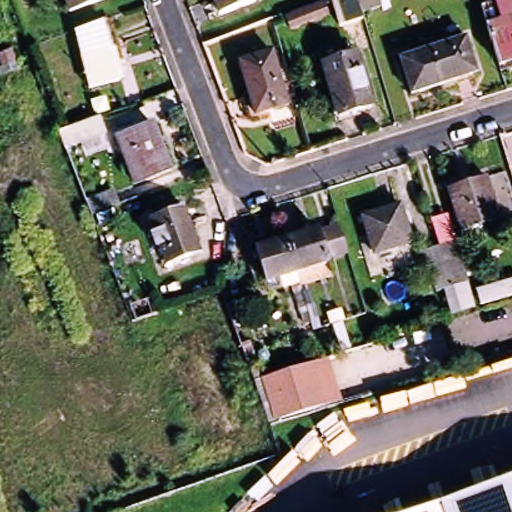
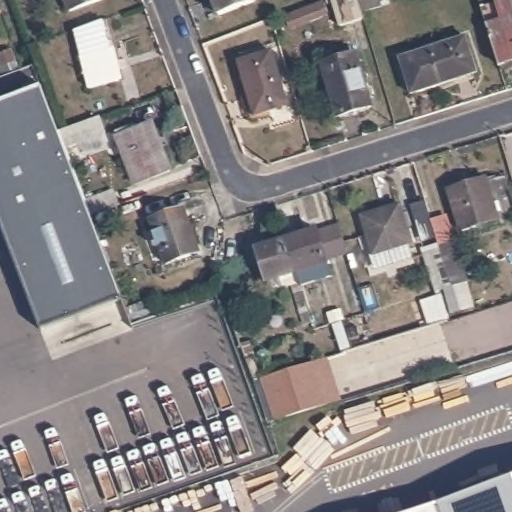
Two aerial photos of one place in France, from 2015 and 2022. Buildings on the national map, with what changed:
unchanged [(65,0),(100,0),(69,11),(65,0)]
unchanged [(214,0),(255,0),(255,2),(220,15),(214,0)]
unchanged [(341,28),(333,0),(357,0),(363,21),(341,28)]
unchanged [(363,14),(359,0),(380,0),(382,10),(363,14)]
unchanged [(496,2),(502,0),(512,0),(512,62),(501,65),(489,26),(482,6),(496,2)]
unchanged [(287,17),(326,3),(331,17),(293,31),(287,17)]
unchanged [(120,79),(93,90),(73,33),(101,22),(120,79)]
unchanged [(480,73),(415,93),(403,57),(468,37),(480,73)]
unchanged [(288,104),(255,114),(240,62),(273,52),(288,104)]
unchanged [(372,106),(340,117),(323,65),(355,54),(372,106)]
new [(0,214),(0,99),(41,83),(65,148),(123,298),(44,329),(0,214)]
unchanged [(91,161),(85,147),(70,153),(65,137),(105,123),(110,137),(109,138),(115,152),(91,161)]
unchanged [(175,177),(138,190),(122,143),(120,136),(140,129),(142,135),(157,129),(175,177)]
unchanged [(500,221),(463,233),(450,190),(488,179),(500,221)]
unchanged [(111,189),(116,208),(94,220),(85,200),(111,189)]
unchanged [(413,245),(375,256),(363,218),(401,206),(413,245)]
unchanged [(200,253),(166,266),(150,223),(184,210),(200,253)]
new [(447,212),(455,238),(440,242),(430,215),(447,212)]
unchanged [(314,233),(335,226),(343,254),(322,260),(324,264),(293,274),(282,241),(313,231),(314,233)]
unchanged [(261,284),(251,251),(282,241),(293,274),(261,284)]
unchanged [(452,320),(444,296),(438,297),(426,256),(440,252),(456,247),(470,287),(466,288),(475,314),(452,320)]
unchanged [(240,304),(226,303),(227,277),(240,277),(240,304)]
new [(512,279),(512,297),(480,306),(478,287),(512,279)]
unchanged [(325,361),(339,404),(285,421),(271,378),(325,361)]
unchanged [(512,479),(512,512),(420,512),(512,479)]

